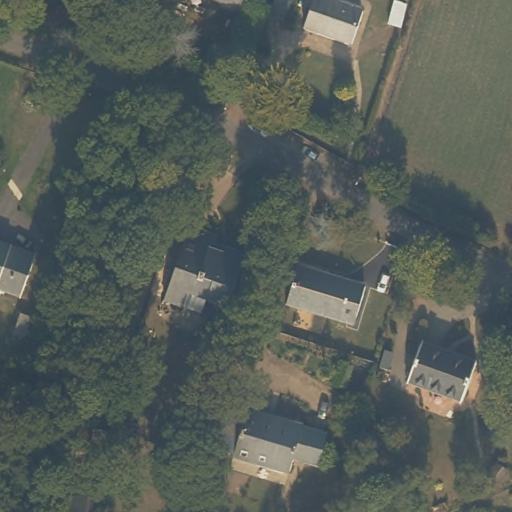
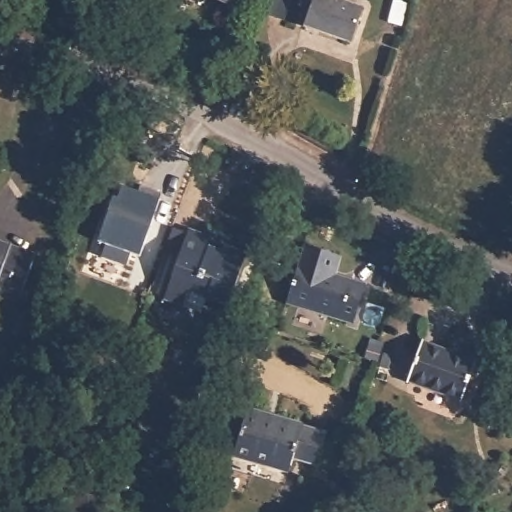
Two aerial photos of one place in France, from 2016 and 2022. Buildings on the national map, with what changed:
unchanged [(242,0),(241,5),(227,0),(242,0)]
unchanged [(292,0),(287,16),(274,12),(278,0),(292,0)]
unchanged [(349,0),(365,5),(353,39),(308,24),(315,0),(349,0)]
new [(115,195),(120,196),(125,185),(142,191),(144,186),(166,194),(163,199),(155,226),(144,255),(135,252),(128,265),(102,256),(109,244),(98,240),(111,210),(115,195)]
unchanged [(206,226),(220,230),(216,242),(228,246),(230,242),(251,250),(235,301),(210,293),(206,307),(167,294),(179,260),(162,255),(173,222),(189,228),(203,233),(206,226)]
unchanged [(35,249),(23,288),(0,281),(0,238),(35,249)]
unchanged [(299,259),(367,280),(355,316),(288,295),(299,259)]
unchanged [(27,308),(38,312),(32,332),(20,329),(27,308)]
unchanged [(423,337),(477,355),(462,396),(409,377),(423,337)]
unchanged [(331,462),(305,454),(301,466),(247,449),(225,443),(240,402),(261,409),(340,434),(331,462)]
unchanged [(501,464),(508,472),(497,486),(488,478),(501,464)]

